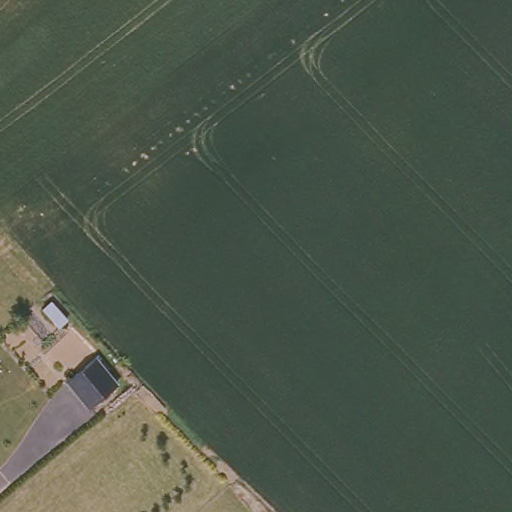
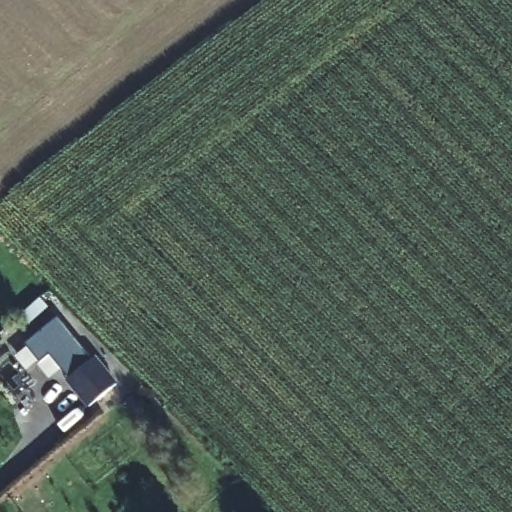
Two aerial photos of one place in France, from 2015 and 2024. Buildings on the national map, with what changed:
new [(48,353),(39,361),(23,342),(56,314),(92,357),(67,377),(48,353)]
unchanged [(73,386),(66,378),(93,355),(100,364),(115,382),(88,404),(73,386)]

